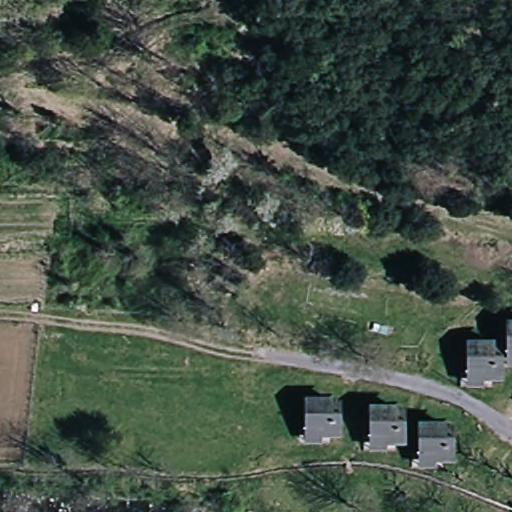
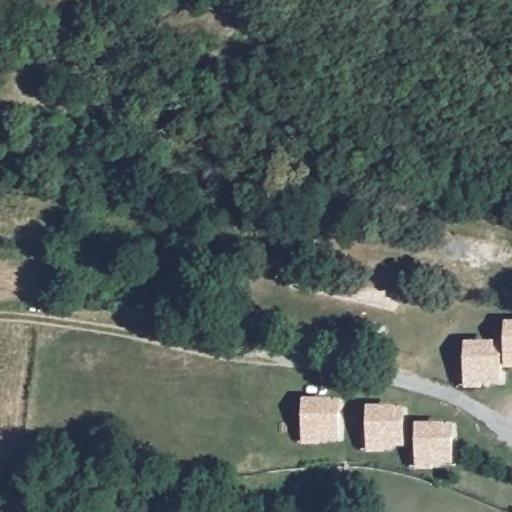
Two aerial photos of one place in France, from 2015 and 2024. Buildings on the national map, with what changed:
unchanged [(510,367),(510,352),(510,326),(512,327),(512,367),(510,367)]
unchanged [(465,384),(465,366),(466,338),(490,339),(490,348),(497,348),(496,371),(482,370),(483,383),(465,384)]
unchanged [(309,441),(309,426),(309,397),(334,398),(334,410),(344,410),(343,432),(325,432),(325,441),(309,441)]
unchanged [(371,445),(370,431),(371,405),(395,405),(395,415),(406,416),(405,437),(387,438),(387,445),(371,445)]
unchanged [(419,470),(420,452),(420,425),(445,425),(445,435),(455,435),(455,460),(437,459),(437,471),(419,470)]

